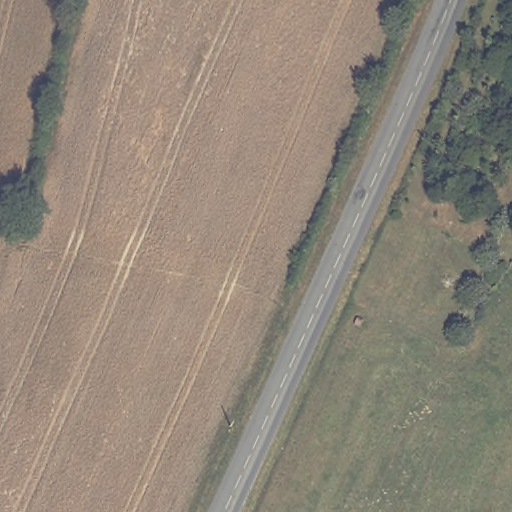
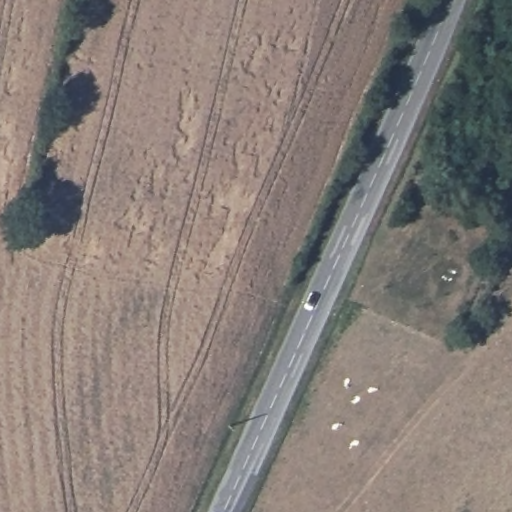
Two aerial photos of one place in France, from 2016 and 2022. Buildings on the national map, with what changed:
[]

